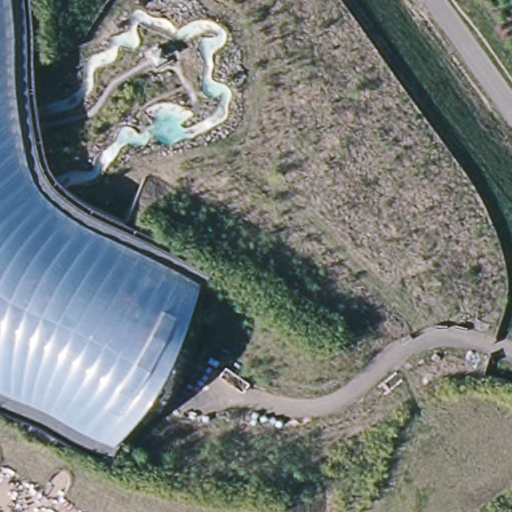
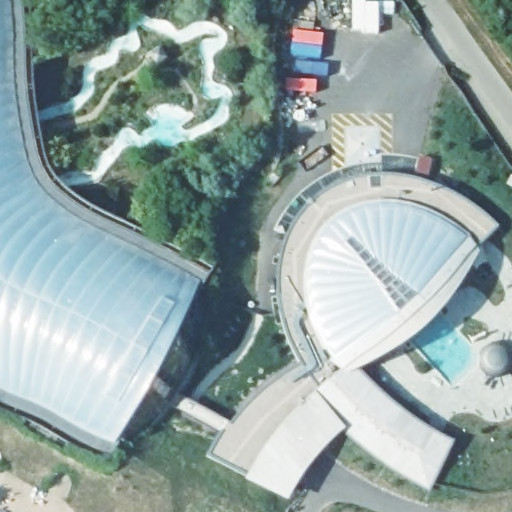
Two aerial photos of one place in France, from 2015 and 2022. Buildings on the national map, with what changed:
unchanged [(28,0),(34,91),(36,111),(38,130),(42,149),(45,163),(53,179),(67,192),(85,204),(103,214),(215,270),(110,466),(74,453),(52,441),(32,429),(13,421),(0,414),(0,0),(28,0)]
new [(478,252),(480,254),(462,280),(447,303),(431,324),(415,338),(387,357),(362,367),(358,370),(387,399),(422,424),(454,442),(428,492),(397,474),(366,452),(342,431),(317,454),(298,482),(287,499),(202,456),(217,429),(170,404),(155,423),(135,444),(123,440),(202,294),(207,304),(205,325),(199,353),(187,381),(177,397),(225,419),(247,398),(271,377),(298,359),(283,325),(278,302),(276,274),(281,246),(293,223),(311,201),(335,185),(361,177),(390,175),(426,182),(467,200),(489,216),(500,227),(478,252)]

